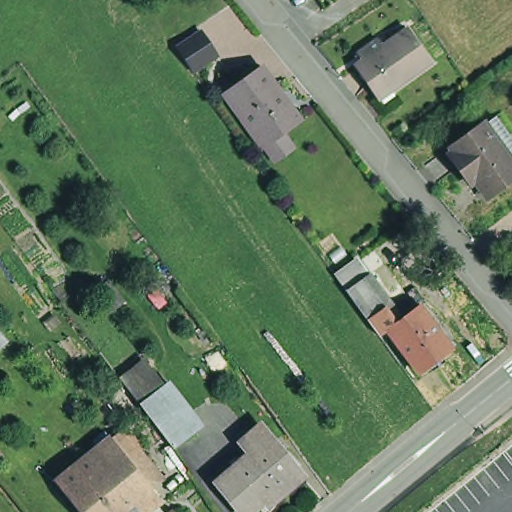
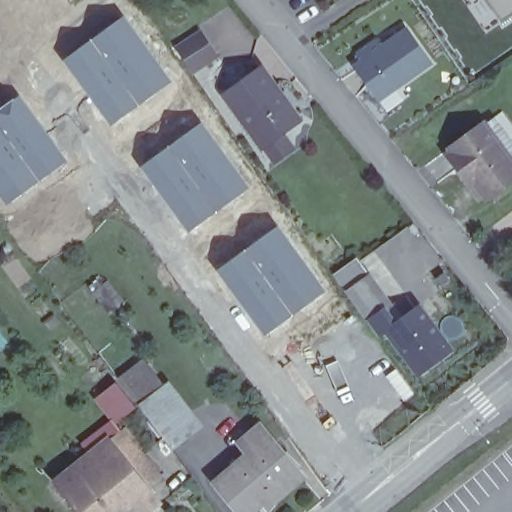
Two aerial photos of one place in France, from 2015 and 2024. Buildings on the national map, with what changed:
new [(485,0),(512,0),(512,13),(499,22),(485,0)]
new [(122,15),(172,80),(111,125),(62,60),(122,15)]
unchanged [(377,95),(357,66),(365,61),(360,54),(380,40),(384,47),(409,30),(433,65),(393,91),(380,100),(377,95)]
unchanged [(202,32),(219,57),(195,74),(177,49),(202,32)]
unchanged [(300,127),(265,153),(227,100),(261,75),(262,75),(277,96),(285,107),(286,106),(301,126),(300,127)]
new [(18,94),(67,160),(7,205),(0,197),(0,107),(18,94)]
new [(201,121),(249,187),(187,231),(140,166),(201,121)]
unchanged [(447,155),(480,129),(512,171),(512,184),(484,205),(447,155)]
new [(277,225),(325,290),(264,335),(215,270),(277,225)]
unchanged [(388,331),(380,337),(347,293),(365,280),(397,323),(388,331)]
unchanged [(397,323),(420,306),(453,351),(420,375),(388,331),(397,323)]
unchanged [(176,451),(121,377),(145,359),(164,385),(171,380),(208,429),(176,451)]
unchanged [(303,481),(269,511),(265,506),(259,512),(238,512),(218,488),(250,461),(245,453),(265,435),(303,481)]
unchanged [(158,486),(147,495),(128,510),(87,457),(107,444),(127,470),(138,461),(158,486)]
unchanged [(61,500),(52,487),(53,486),(87,457),(128,510),(126,512),(71,512),(61,500)]

